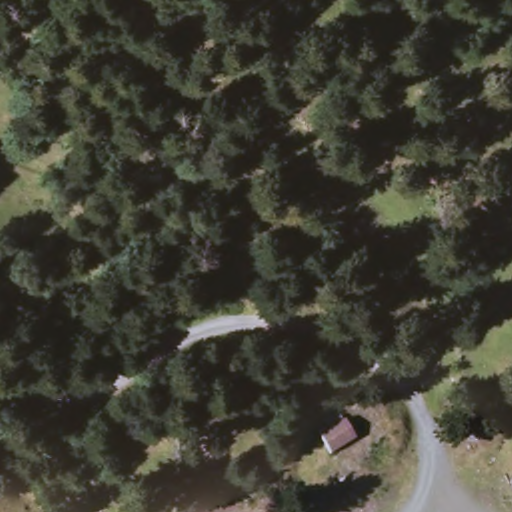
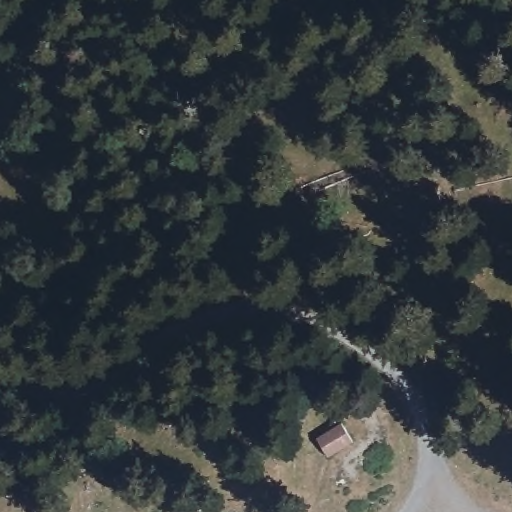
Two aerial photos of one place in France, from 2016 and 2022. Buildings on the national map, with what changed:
unchanged [(315,431),(344,414),(354,433),(341,444),(329,453),(315,431)]

